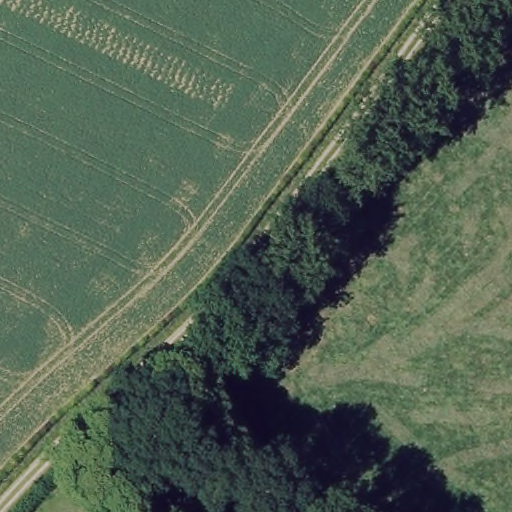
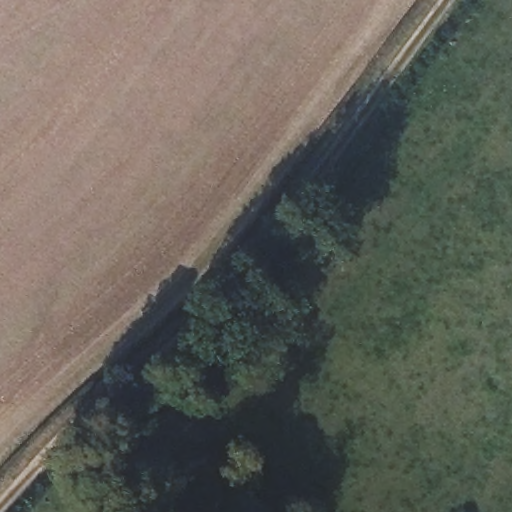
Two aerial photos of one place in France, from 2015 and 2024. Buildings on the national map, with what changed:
[]

